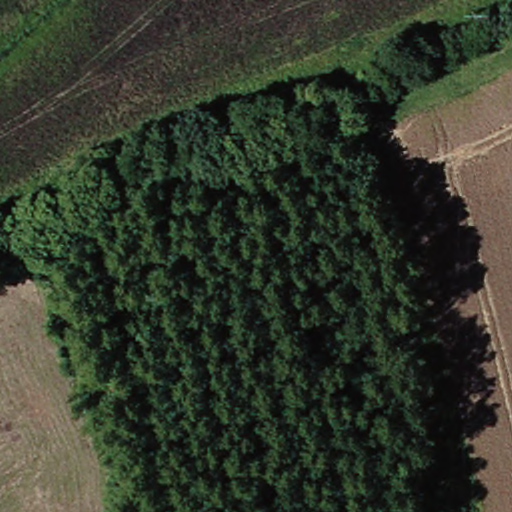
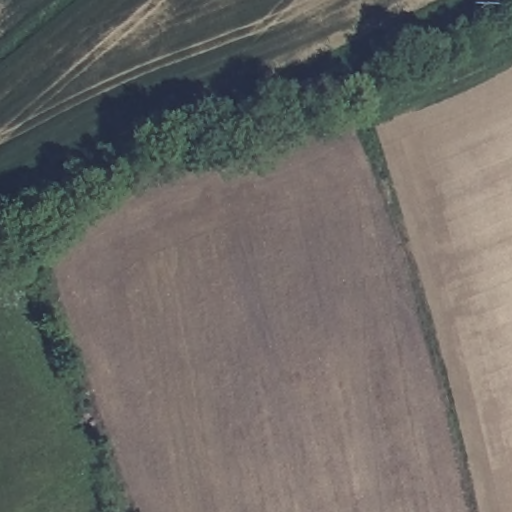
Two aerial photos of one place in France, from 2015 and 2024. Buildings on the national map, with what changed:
[]

